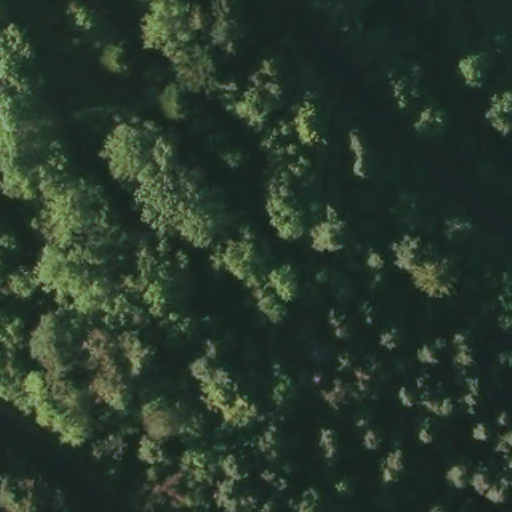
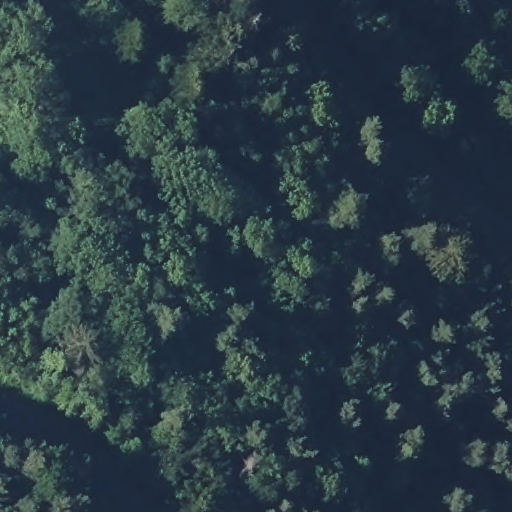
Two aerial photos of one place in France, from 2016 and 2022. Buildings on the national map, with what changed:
[]

